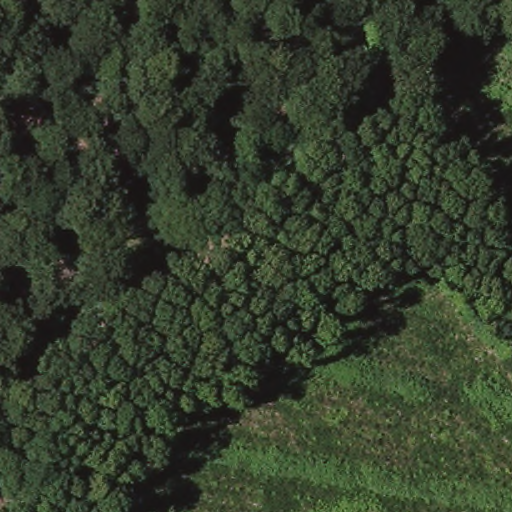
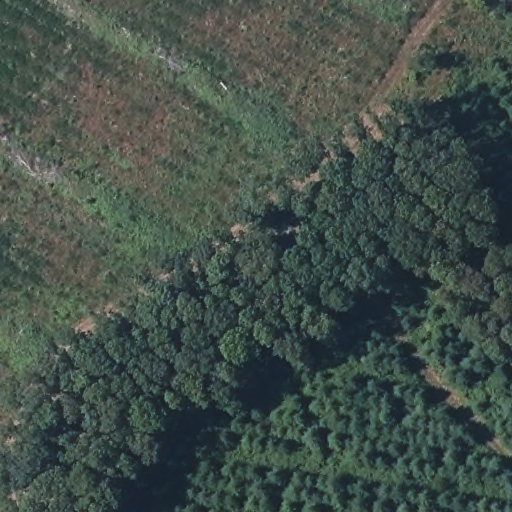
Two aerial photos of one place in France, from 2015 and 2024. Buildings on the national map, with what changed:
[]

